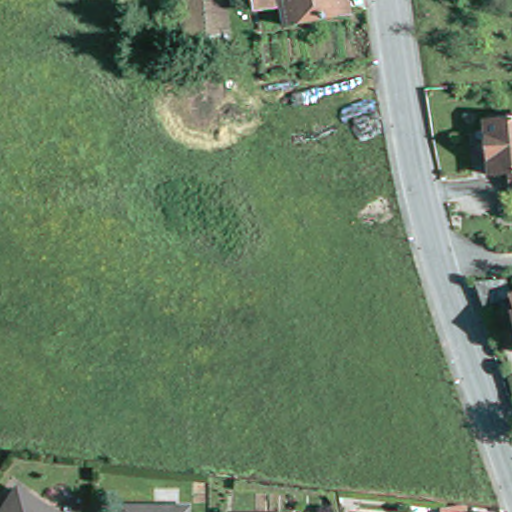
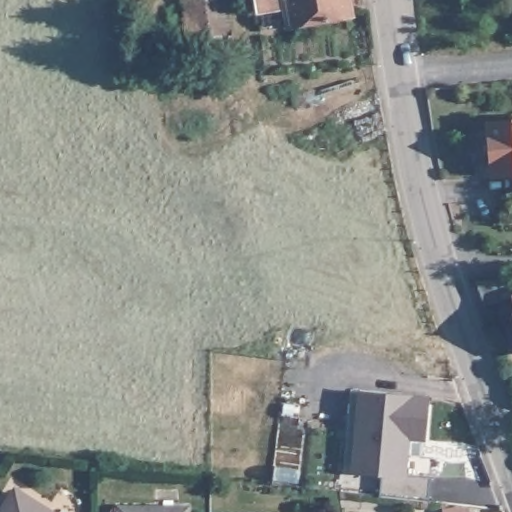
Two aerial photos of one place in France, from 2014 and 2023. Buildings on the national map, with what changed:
unchanged [(230,41),(180,42),(179,0),(230,0),(230,41)]
unchanged [(350,18),(285,27),(282,8),(255,12),(254,0),(347,0),(350,18)]
unchanged [(512,115),(512,184),(503,184),(501,168),(485,169),(483,148),(476,148),(475,140),(482,139),(480,118),(512,115)]
unchanged [(492,312),(485,286),(512,284),(512,308),(492,312)]
new [(429,474),(427,497),(380,493),(382,474),(351,471),(357,388),(427,394),(423,440),(422,453),(408,452),(407,473),(429,474)]
unchanged [(42,512),(5,512),(16,495),(42,512)]
unchanged [(460,510),(461,512),(442,512),(442,511),(460,510)]
unchanged [(182,512),(122,512),(182,511),(182,512)]

